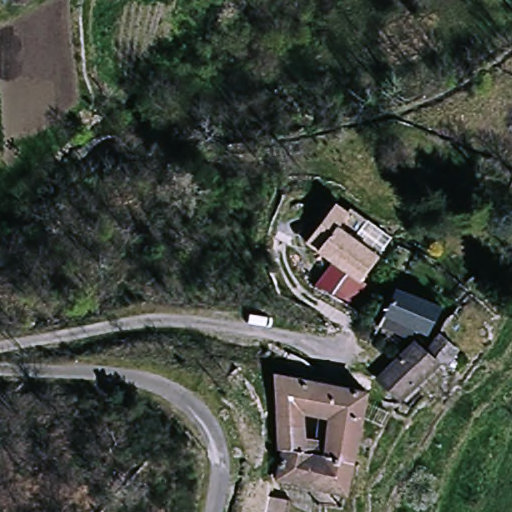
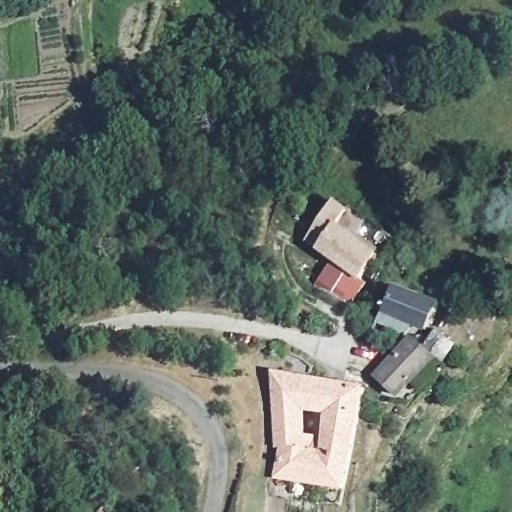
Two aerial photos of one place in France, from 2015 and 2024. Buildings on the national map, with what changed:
unchanged [(362,278),(368,282),(351,308),(316,287),(337,265),(317,250),(305,242),(335,200),(350,211),(340,225),(380,255),(362,278)]
unchanged [(397,283),(442,301),(432,325),(417,319),(400,337),(371,330),(397,283)]
unchanged [(440,362),(434,358),(394,397),(373,376),(415,337),(422,346),(443,326),(460,343),(440,362)]
unchanged [(287,451),(270,377),(335,381),(363,389),(347,487),(282,475),(287,451)]
unchanged [(275,487),(275,481),(295,485),(294,491),(291,510),(270,506),(275,487)]

